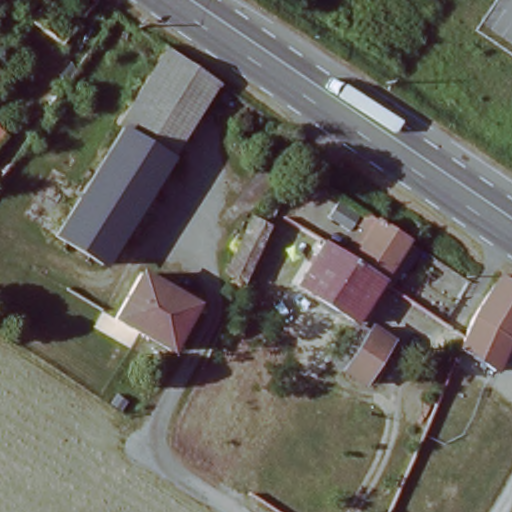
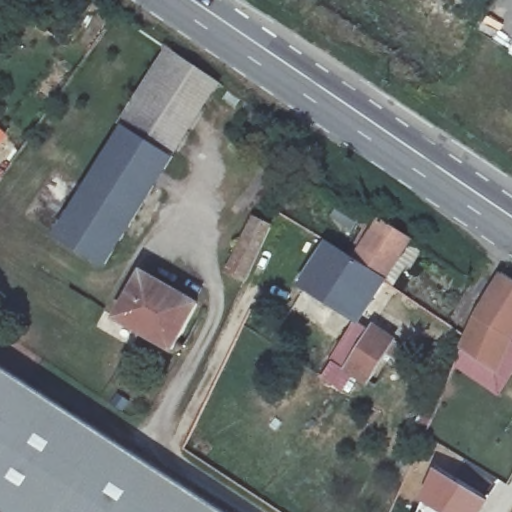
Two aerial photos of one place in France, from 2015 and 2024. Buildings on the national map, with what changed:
unchanged [(123,125),(171,54),(217,85),(171,157),(123,125)]
unchanged [(0,123),(14,138),(0,154),(0,123)]
unchanged [(171,157),(103,262),(54,234),(123,125),(171,157)]
demolished [(376,223),(390,200),(423,222),(409,243),(376,223)]
unchanged [(338,201),(361,217),(350,237),(326,220),(338,201)]
unchanged [(247,280),(224,270),(249,219),(270,228),(247,280)]
unchanged [(400,346),(394,355),(388,350),(379,363),(363,387),(346,375),(350,370),(334,358),(355,325),(299,287),(324,249),(349,264),(353,260),(362,244),(376,223),(409,243),(395,266),(385,280),(359,320),(400,346)]
unchanged [(112,316),(140,272),(194,305),(167,350),(112,316)]
unchanged [(512,281),(512,361),(501,380),(465,357),(473,340),(480,324),(500,296),(510,280),(512,281)]
new [(0,512),(0,366),(224,512),(0,512)]
new [(488,500),(480,512),(432,512),(420,502),(436,468),(488,500)]

